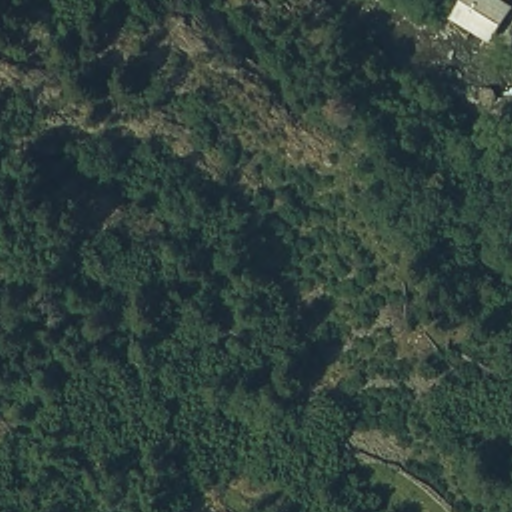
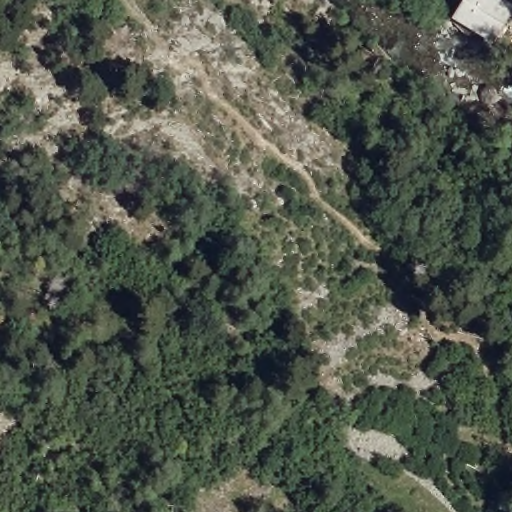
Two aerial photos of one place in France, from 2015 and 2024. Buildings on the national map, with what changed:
unchanged [(512,0),(512,17),(495,49),(450,26),(463,0),(512,0)]

